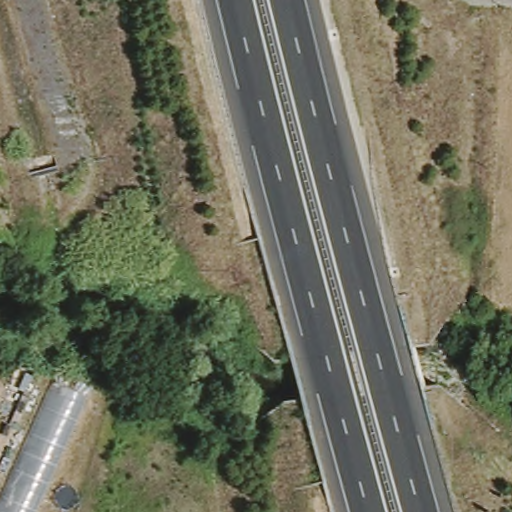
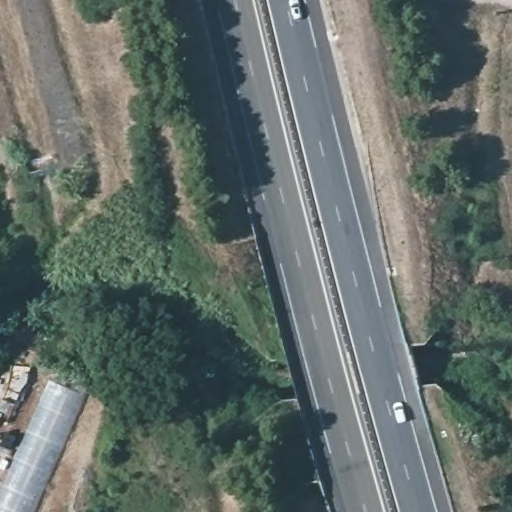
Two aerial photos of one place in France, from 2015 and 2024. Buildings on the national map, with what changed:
unchanged [(54,385),(83,403),(32,512),(0,512),(0,503),(54,385)]

